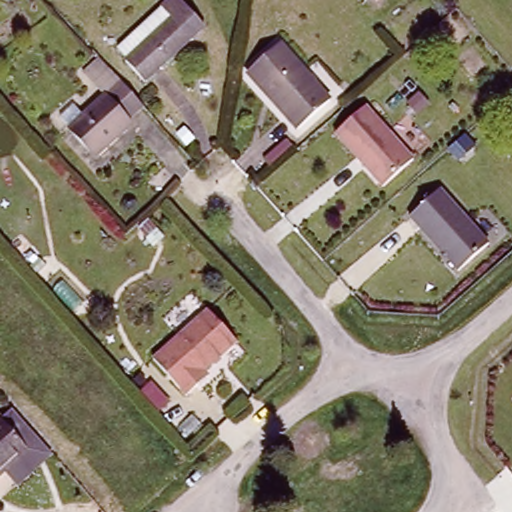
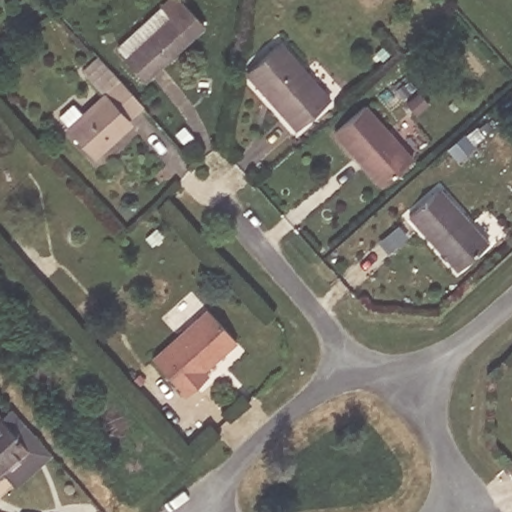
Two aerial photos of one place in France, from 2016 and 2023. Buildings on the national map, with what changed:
unchanged [(173,22),(162,11),(174,0),(178,0),(205,29),(145,84),(127,65),(173,22)]
unchanged [(282,47),(332,105),(300,134),(249,77),(282,47)]
unchanged [(75,103),(85,114),(107,94),(96,82),(112,69),(143,104),(127,117),(132,122),(116,136),(114,134),(108,139),(110,142),(95,156),(70,127),(60,116),(75,103)]
unchanged [(329,141),(365,112),(410,166),(376,193),(329,141)]
unchanged [(405,225),(438,196),(487,252),(453,276),(405,225)]
unchanged [(203,318),(232,351),(198,380),(203,386),(182,405),(148,367),(203,318)]
unchanged [(0,474),(0,420),(27,450),(0,474)]

